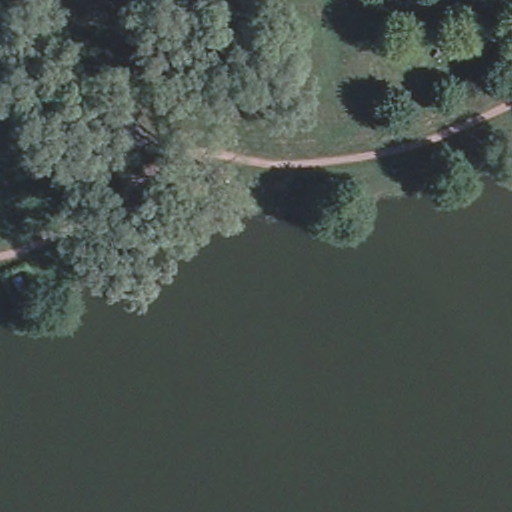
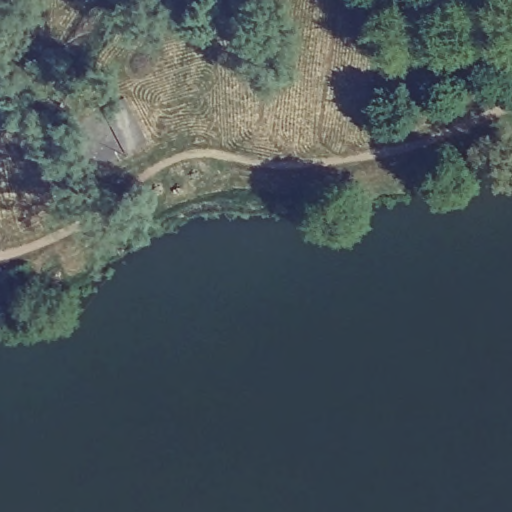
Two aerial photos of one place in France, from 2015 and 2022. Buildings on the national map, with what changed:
unchanged [(152,103),(177,147),(154,160),(129,116),(152,103)]

